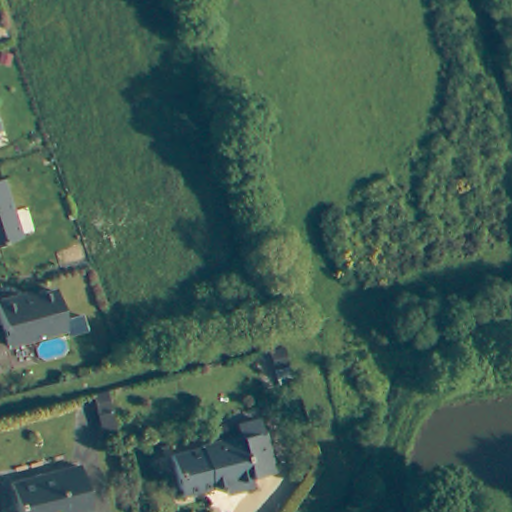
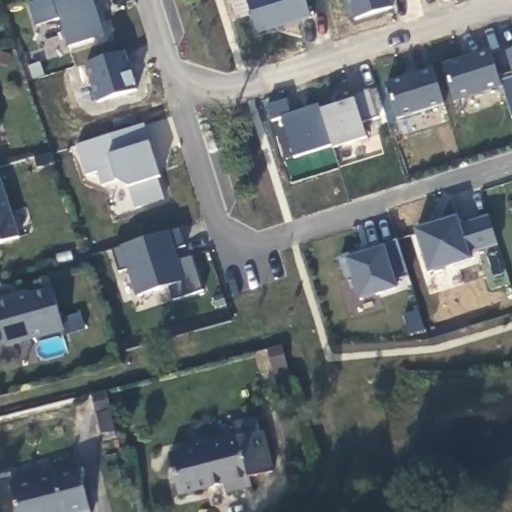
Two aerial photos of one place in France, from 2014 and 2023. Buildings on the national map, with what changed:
new [(94,2),(105,35),(68,45),(59,19),(35,25),(27,3),(37,0),(100,0),(94,2)]
new [(320,12),(304,17),(305,19),(251,36),(240,0),(316,0),(320,12)]
new [(386,11),(350,22),(343,0),(383,0),(386,11)]
new [(500,88),(453,103),(442,66),(490,49),(500,77),(511,72),(504,52),(512,48),(512,117),(510,118),(500,88)]
new [(398,120),(385,83),(433,67),(447,105),(398,120)]
new [(373,121),(357,126),(361,141),(327,152),(315,113),(337,106),(336,102),(365,92),(373,121)]
new [(288,161),(275,121),(266,125),(261,109),(280,103),(285,118),(313,109),(326,150),(288,161)]
new [(131,210),(125,187),(114,182),(100,187),(96,172),(84,175),(75,146),(145,125),(152,143),(161,179),(157,180),(165,200),(131,210)]
unchanged [(0,182),(20,240),(0,246),(0,182)]
new [(499,244),(470,252),(471,260),(430,272),(418,231),(459,217),(461,225),(488,215),(499,244)]
new [(170,300),(166,289),(135,297),(125,268),(119,270),(113,249),(179,226),(185,246),(174,249),(177,261),(192,257),(202,290),(170,300)]
new [(394,278),(398,290),(360,299),(348,257),(373,250),(372,247),(397,240),(407,275),(394,278)]
unchanged [(22,299),(24,303),(59,294),(69,332),(10,348),(0,309),(0,305),(22,299)]
unchanged [(270,351),(276,372),(261,376),(255,354),(270,351)]
unchanged [(93,395),(99,417),(84,422),(77,399),(93,395)]
unchanged [(198,442),(197,440),(240,431),(237,420),(261,414),(276,467),(251,473),(254,481),(229,487),(226,479),(201,486),(202,488),(189,491),(188,489),(185,490),(172,449),(198,442)]
unchanged [(77,464),(90,512),(16,512),(10,480),(77,464)]

